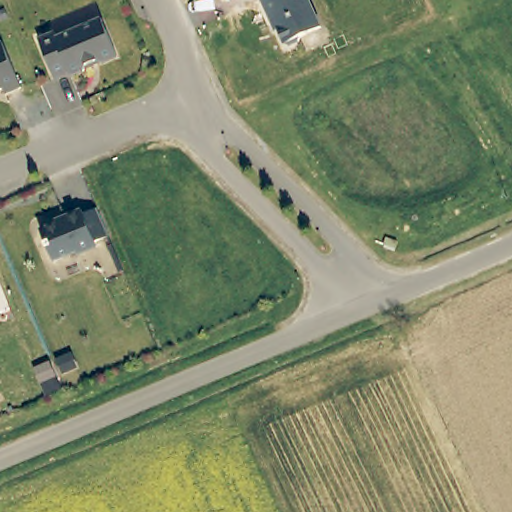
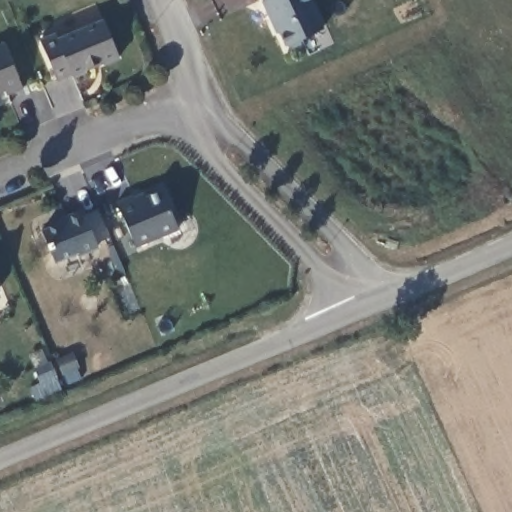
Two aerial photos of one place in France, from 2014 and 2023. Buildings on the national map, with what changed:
unchanged [(324,34),(304,42),(303,47),(293,51),(288,50),(280,30),(276,32),(262,0),(309,0),(324,34)]
unchanged [(104,65),(99,63),(89,67),(86,72),(73,76),(71,73),(56,78),(39,43),(55,36),(58,42),(102,22),(119,60),(104,65)]
unchanged [(11,99),(8,94),(0,98),(0,51),(6,48),(26,92),(11,99)]
new [(135,247),(116,201),(132,194),(133,196),(144,192),(146,194),(161,189),(178,229),(135,247)]
unchanged [(86,216),(87,220),(101,214),(113,242),(100,247),(101,252),(81,260),(80,258),(56,267),(45,236),(61,230),(60,226),(86,216)]

